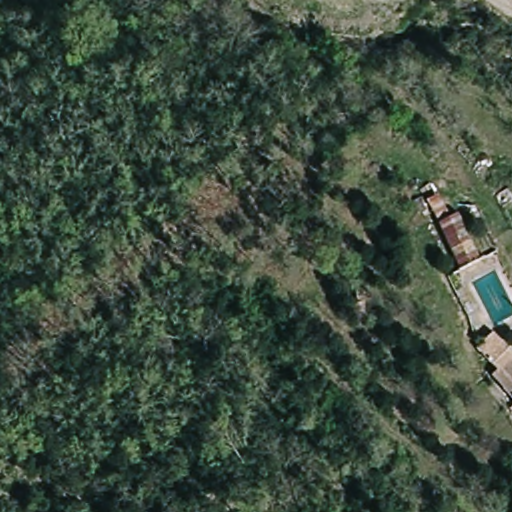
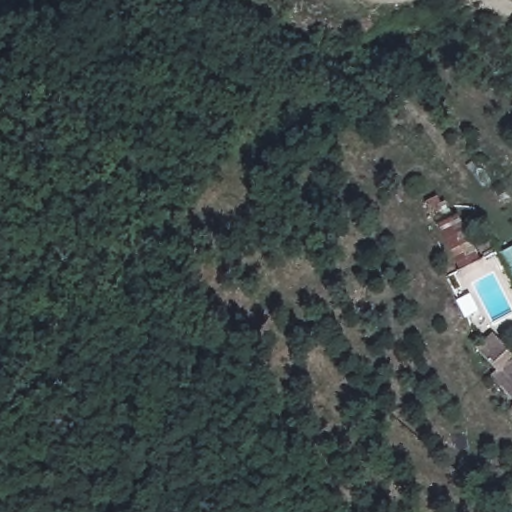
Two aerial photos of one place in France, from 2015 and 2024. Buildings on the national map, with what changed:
unchanged [(436,236),(453,223),(483,261),(486,265),(466,277),(462,272),(436,236)]
unchanged [(504,350),(512,358),(512,395),(486,370),(504,350)]

